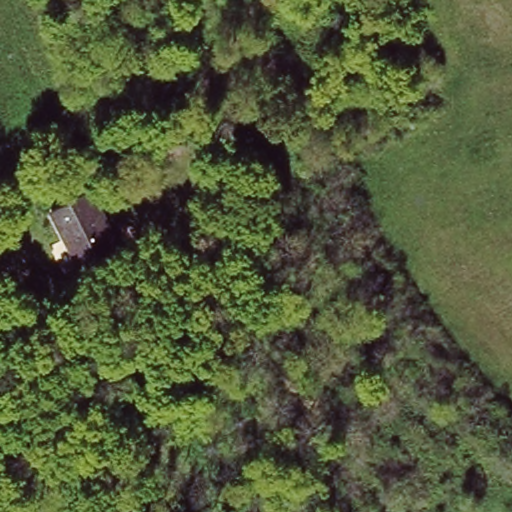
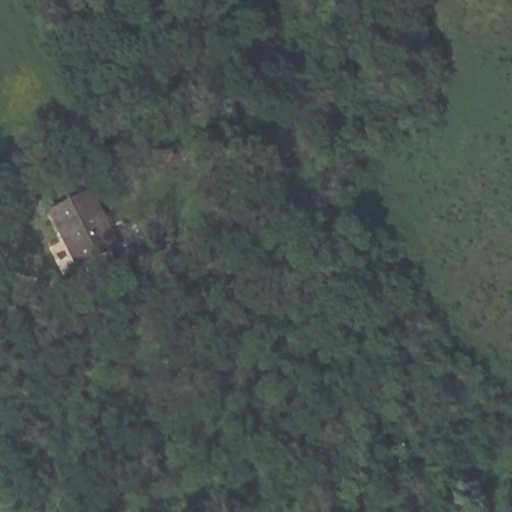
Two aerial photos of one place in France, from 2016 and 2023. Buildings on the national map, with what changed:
unchanged [(236,167),(243,197),(219,202),(214,173),(236,167)]
unchanged [(91,186),(118,245),(110,250),(113,257),(89,269),(83,258),(77,261),(53,203),(91,186)]

